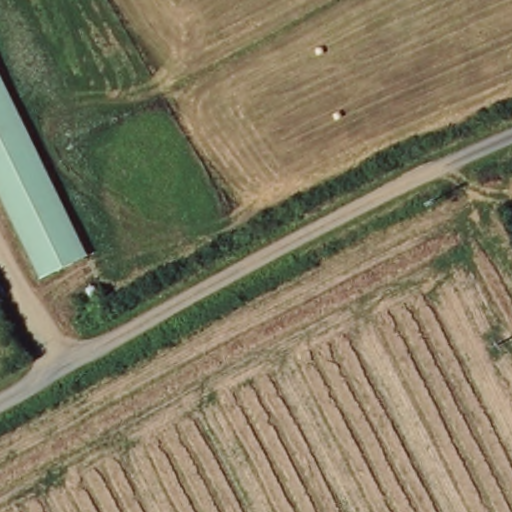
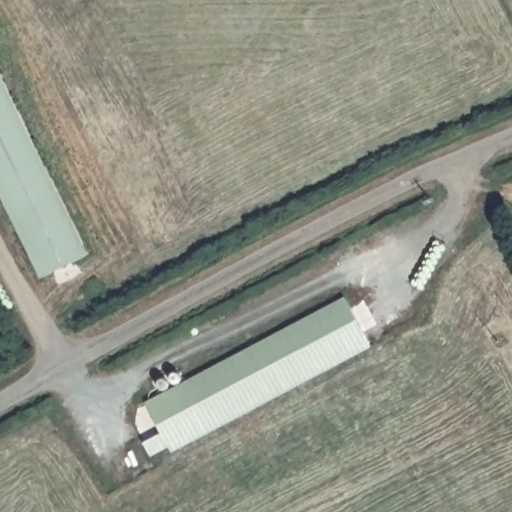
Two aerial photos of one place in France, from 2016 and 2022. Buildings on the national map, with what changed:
unchanged [(0,75),(88,257),(39,281),(0,200),(0,75)]
new [(164,433),(150,405),(346,300),(369,348),(173,453),(170,449),(151,460),(144,445),(164,433)]

